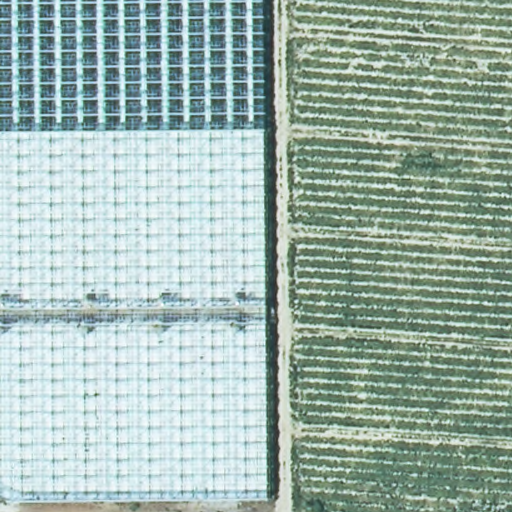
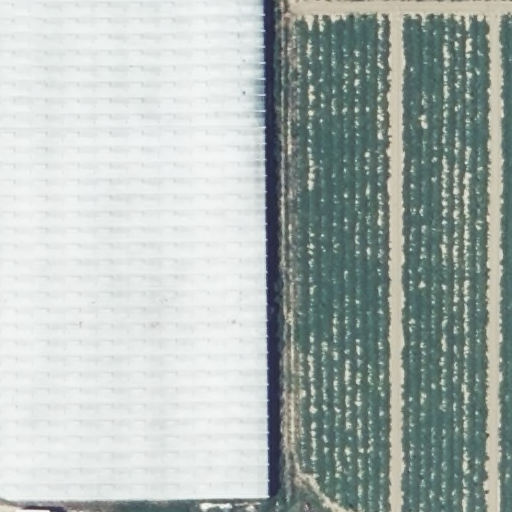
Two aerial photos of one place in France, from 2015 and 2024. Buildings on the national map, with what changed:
unchanged [(262,496),(0,499),(0,0),(259,0),(259,18),(262,496)]

